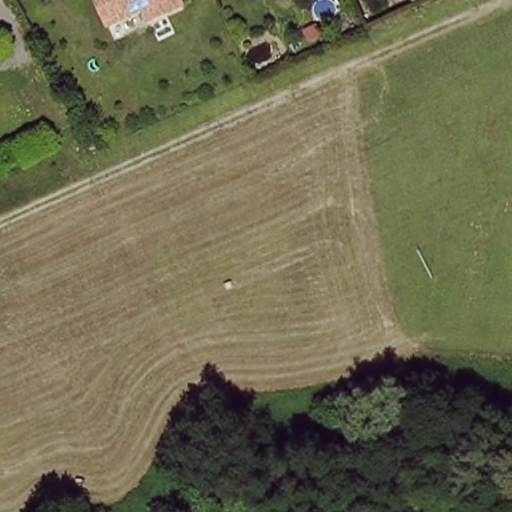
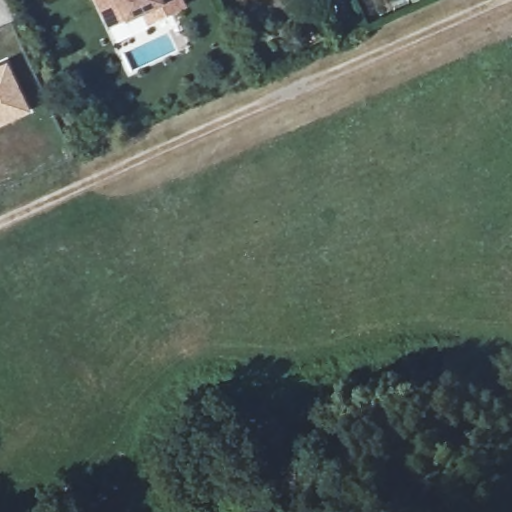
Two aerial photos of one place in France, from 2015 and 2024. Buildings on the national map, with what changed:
unchanged [(148,22),(142,10),(107,25),(95,0),(178,0),(182,6),(148,22)]
new [(0,128),(0,64),(9,60),(32,115),(0,128)]

